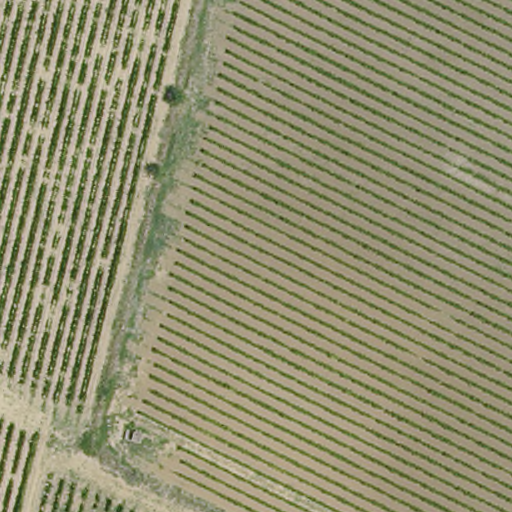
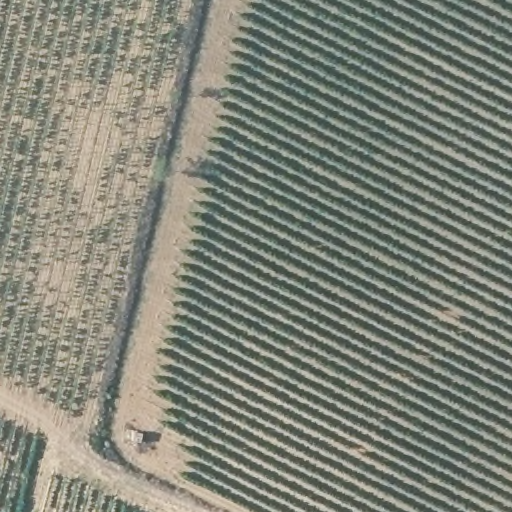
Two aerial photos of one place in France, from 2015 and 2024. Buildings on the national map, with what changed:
unchanged [(142,447),(127,444),(127,430),(144,435),(142,447)]

